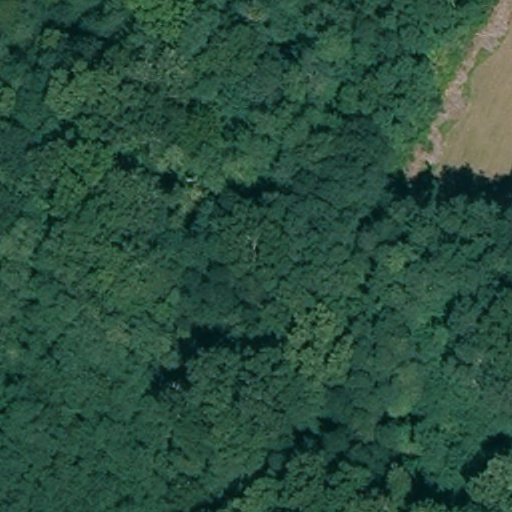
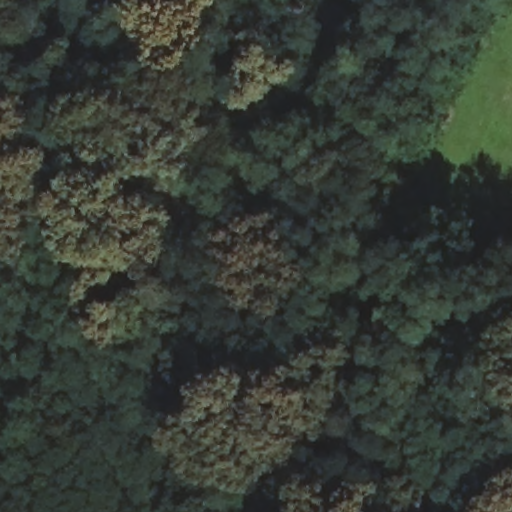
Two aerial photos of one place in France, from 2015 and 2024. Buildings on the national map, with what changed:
[]

